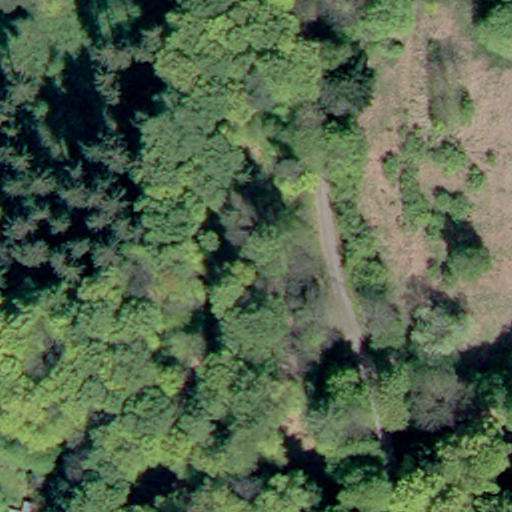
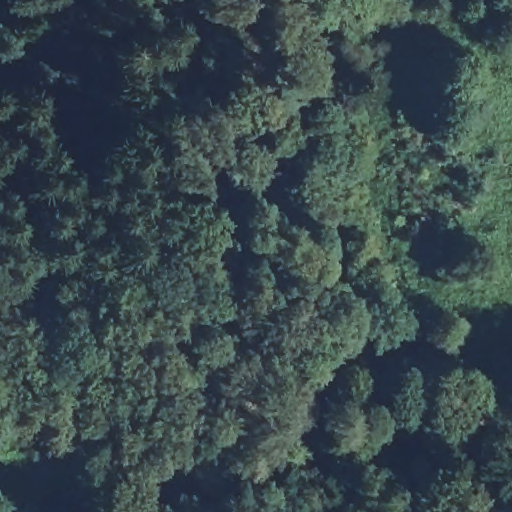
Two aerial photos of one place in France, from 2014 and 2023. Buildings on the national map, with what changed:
unchanged [(0,512),(0,510),(16,512),(0,512)]

